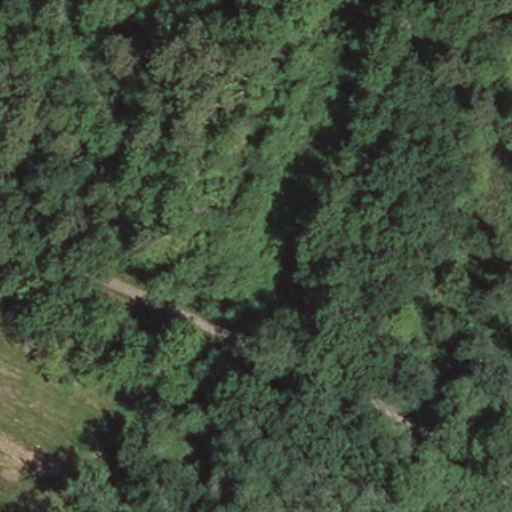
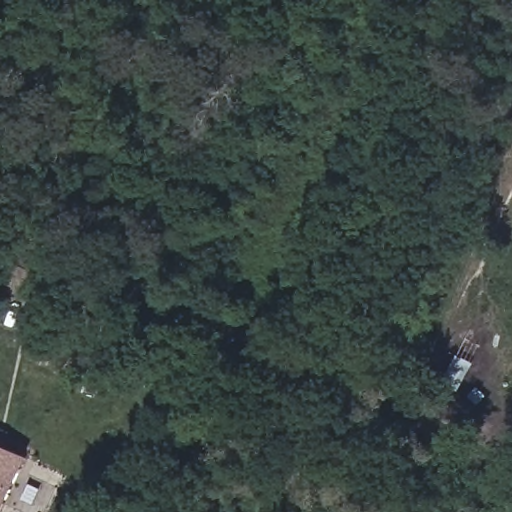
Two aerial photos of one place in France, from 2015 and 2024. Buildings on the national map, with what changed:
new [(4,512),(0,512),(0,443),(29,456),(4,512)]

